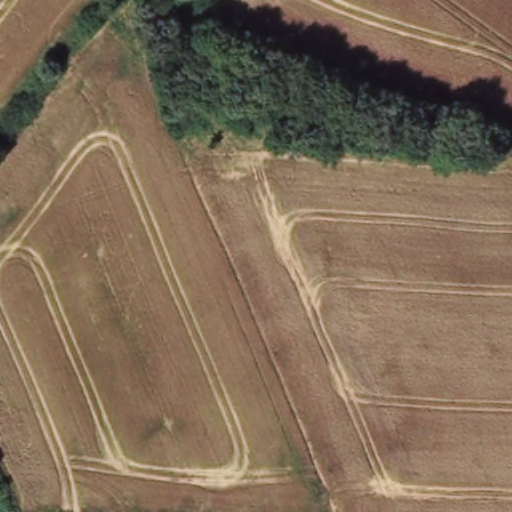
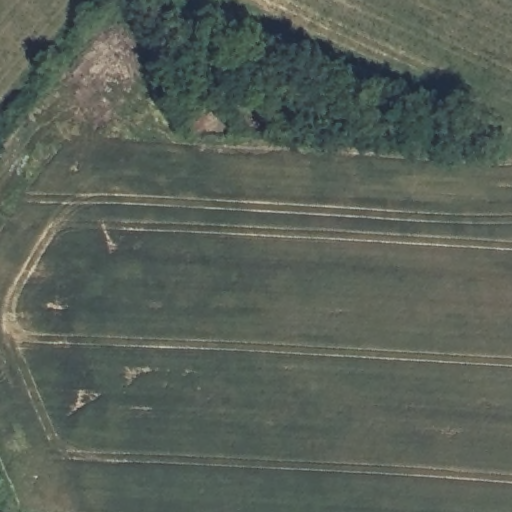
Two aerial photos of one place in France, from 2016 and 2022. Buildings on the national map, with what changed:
[]

